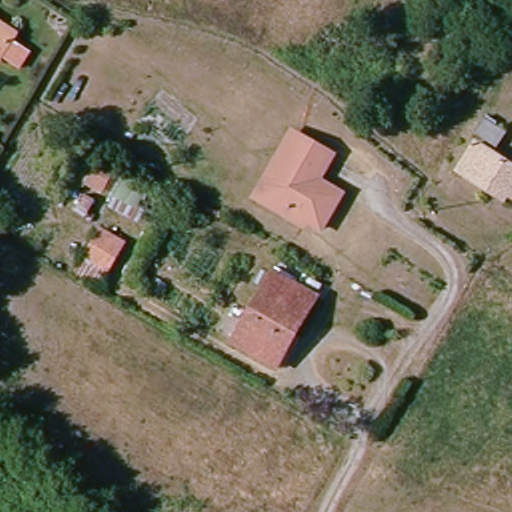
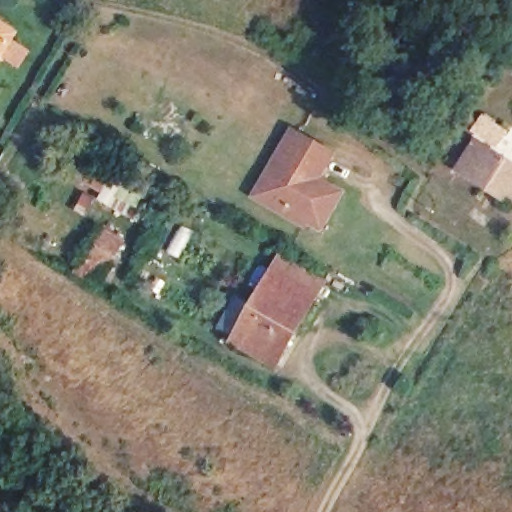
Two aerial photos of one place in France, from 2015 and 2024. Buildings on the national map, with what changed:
unchanged [(16,44),(4,60),(0,61),(0,23),(14,32),(16,44)]
unchanged [(499,142),(494,152),(472,140),(479,128),(499,142)]
unchanged [(305,220),(275,202),(270,180),(288,150),(294,154),(303,140),(331,156),(322,171),(318,169),(310,182),(320,188),(323,184),(340,194),(322,224),(319,229),(305,220)]
unchanged [(512,174),(512,210),(499,201),(494,209),(448,179),(469,145),(512,174)]
unchanged [(100,288),(73,274),(95,231),(119,245),(100,288)]
unchanged [(308,300),(267,371),(227,347),(268,277),(308,300)]

